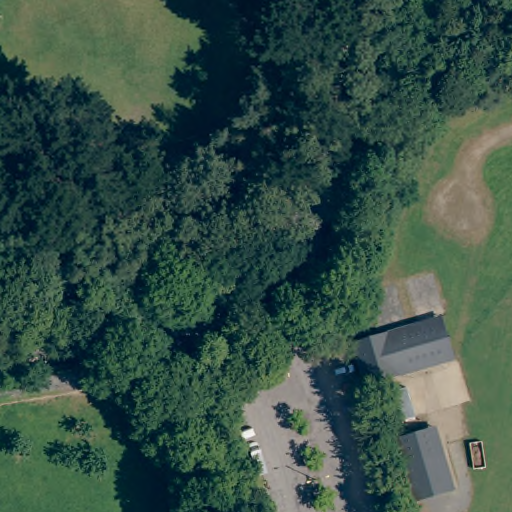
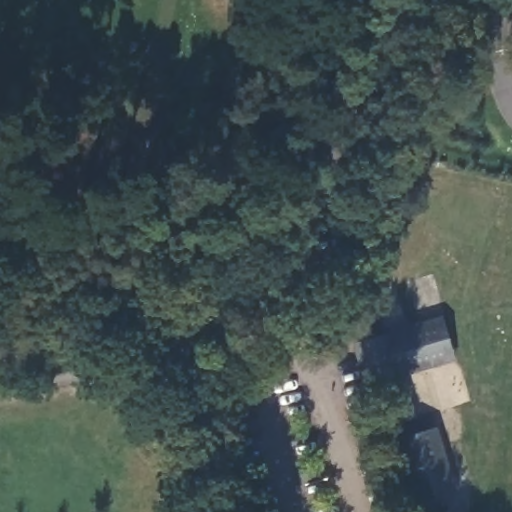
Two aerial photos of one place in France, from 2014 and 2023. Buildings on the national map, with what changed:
unchanged [(444,316),(457,359),(402,375),(400,367),(446,353),(437,325),(391,339),(389,332),(444,316)]
unchanged [(391,339),(437,325),(446,353),(400,367),(402,375),(368,385),(356,342),(388,331),(389,332),(391,339)]
unchanged [(417,500),(415,491),(398,437),(428,429),(436,426),(445,454),(452,480),(455,489),(417,500)]

